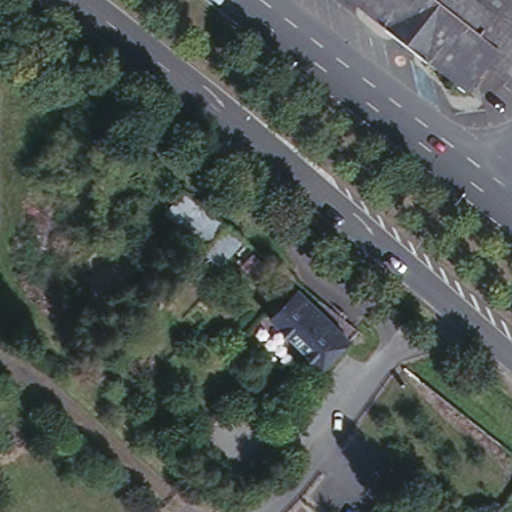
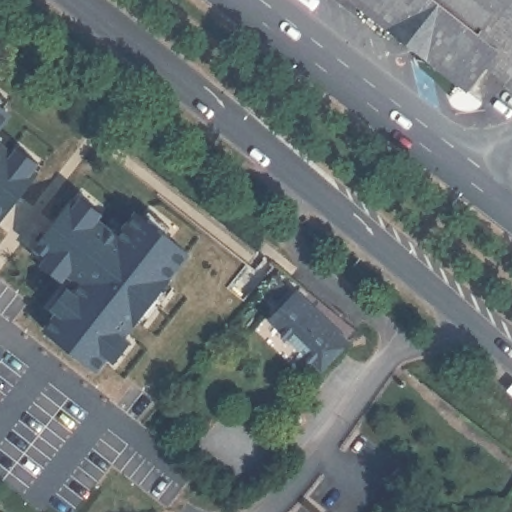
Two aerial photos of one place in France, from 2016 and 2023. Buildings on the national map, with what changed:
unchanged [(468,81),(364,0),(447,0),(458,9),(465,0),(512,0),(512,66),(508,71),(487,56),(468,81)]
unchanged [(447,0),(465,0),(458,9),(447,0)]
new [(0,132),(0,105),(13,114),(0,132)]
new [(0,218),(0,135),(42,164),(0,218)]
new [(182,255),(98,371),(38,326),(74,280),(38,250),(85,183),(182,255)]
demolished [(165,212),(187,187),(246,236),(226,259),(165,212)]
unchanged [(349,340),(321,368),(272,321),(301,292),(349,340)]

